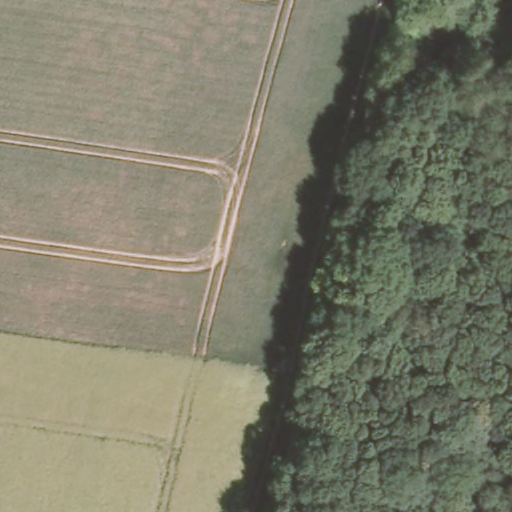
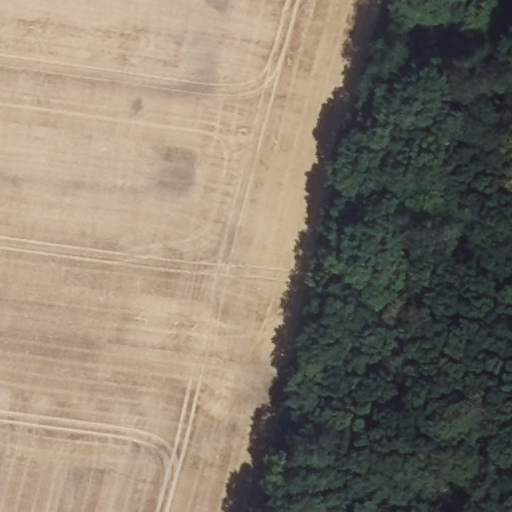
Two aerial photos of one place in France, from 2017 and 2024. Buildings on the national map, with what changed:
unchanged [(446,0),(468,7),(454,46),(425,34),(431,0),(446,0)]

